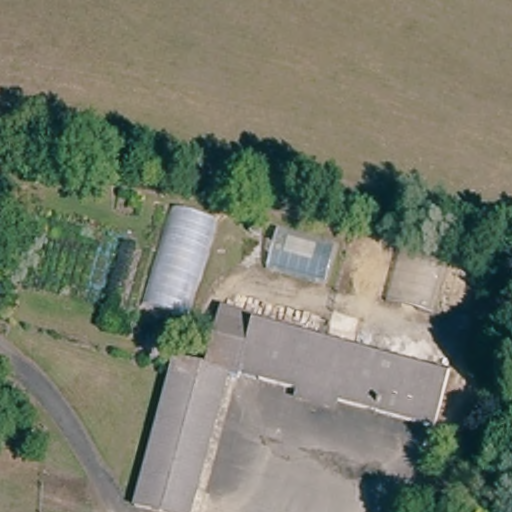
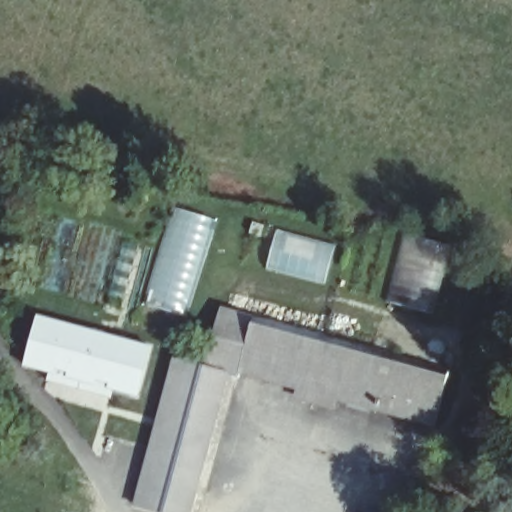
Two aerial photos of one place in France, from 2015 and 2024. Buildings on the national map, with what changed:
unchanged [(188,319),(141,305),(172,205),(217,222),(188,319)]
new [(276,228),(336,244),(324,285),(264,269),(276,228)]
unchanged [(382,302),(403,234),(447,246),(431,315),(382,302)]
unchanged [(446,366),(431,424),(236,372),(236,364),(208,358),(220,309),(250,319),(252,314),(446,366)]
new [(36,314),(152,344),(139,398),(112,392),(110,399),(52,385),(51,391),(44,388),(48,373),(21,367),(36,314)]
unchanged [(130,501),(170,357),(226,373),(218,403),(206,408),(194,454),(200,465),(193,494),(188,512),(162,512),(130,501)]

